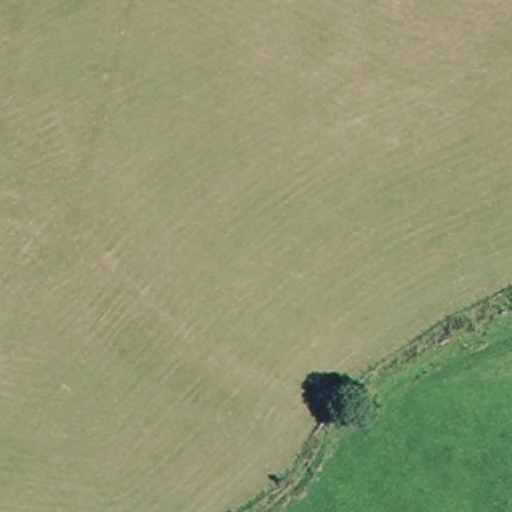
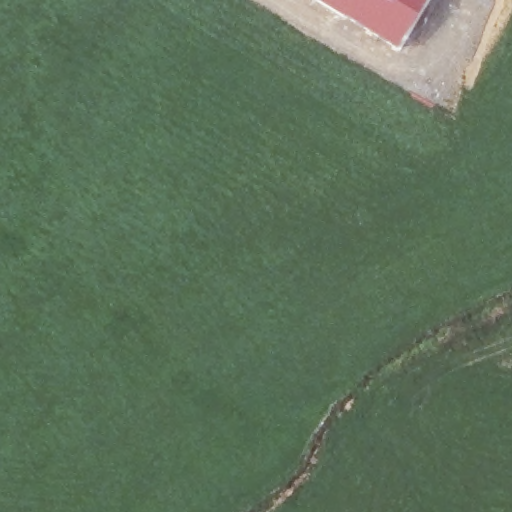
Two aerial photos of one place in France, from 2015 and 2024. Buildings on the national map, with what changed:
new [(325,6),(314,0),(429,0),(398,50),(325,6)]

